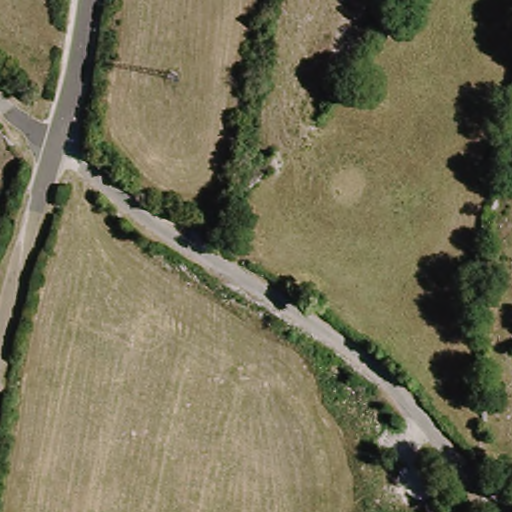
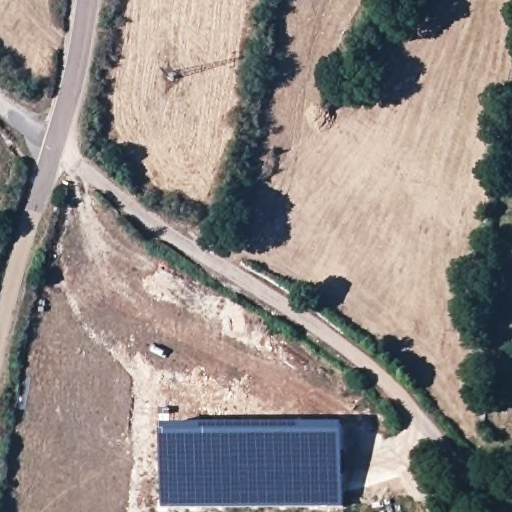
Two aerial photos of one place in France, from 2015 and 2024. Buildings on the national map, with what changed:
new [(343,423),(345,507),(163,509),(162,424),(343,423)]

